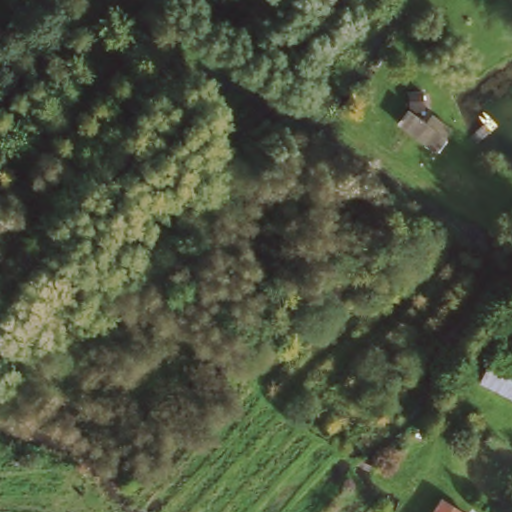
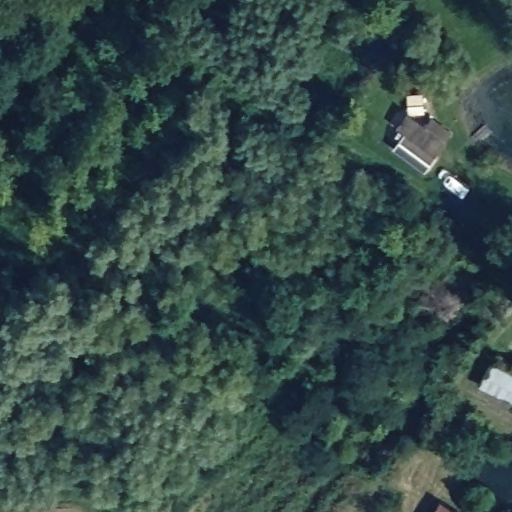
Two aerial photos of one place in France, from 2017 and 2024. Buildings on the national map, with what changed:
unchanged [(398,127),(406,110),(424,123),(431,116),(451,130),(445,138),(447,140),(438,153),(398,127)]
unchanged [(512,370),(512,403),(477,386),(488,360),(512,370)]
unchanged [(431,512),(439,499),(459,512),(431,512)]

